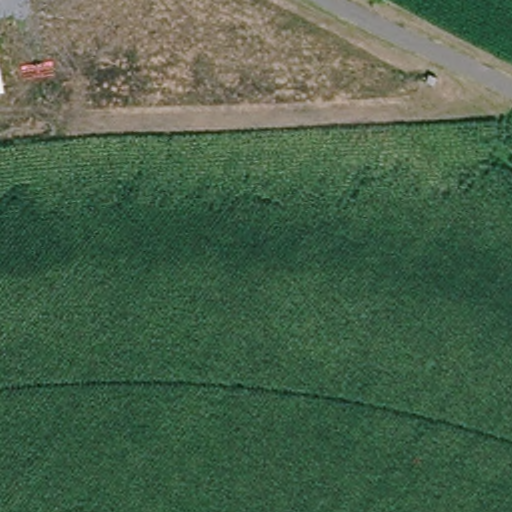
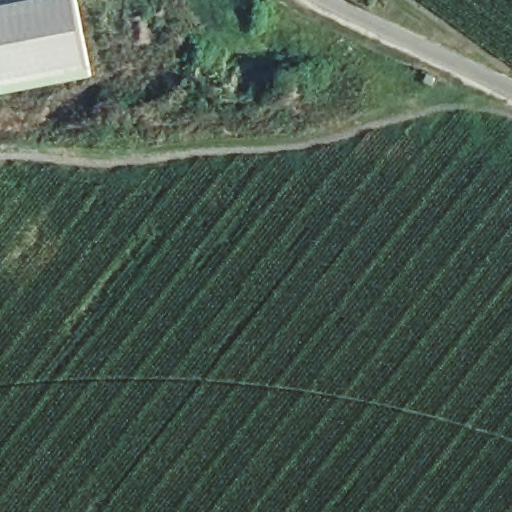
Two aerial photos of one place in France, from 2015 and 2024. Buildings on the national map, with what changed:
new [(77,0),(90,72),(3,87),(0,72),(0,5),(30,0),(77,0)]
unchanged [(3,87),(0,88),(0,72),(3,87)]

